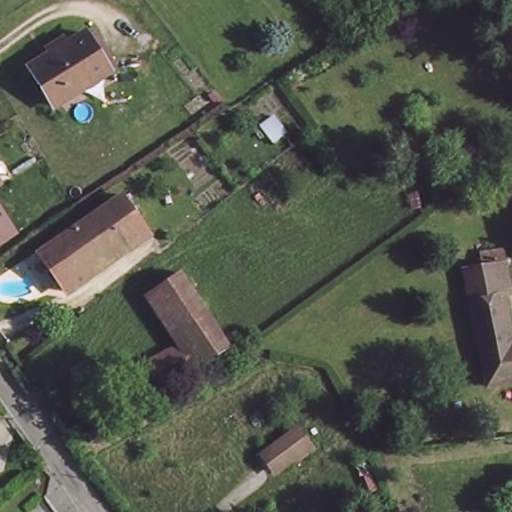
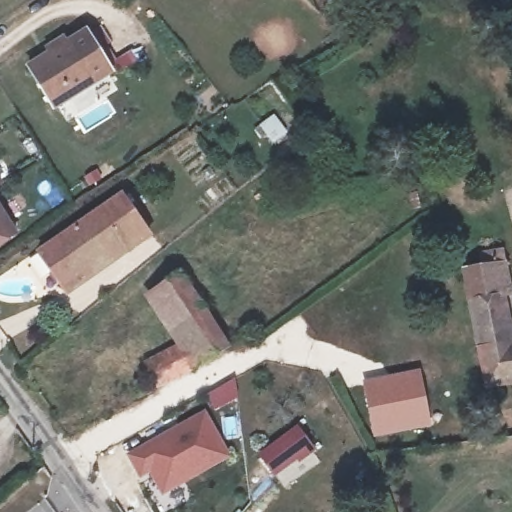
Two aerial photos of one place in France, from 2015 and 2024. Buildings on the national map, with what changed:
unchanged [(60,103),(35,66),(93,31),(116,70),(60,103)]
unchanged [(0,188),(0,171),(8,183),(0,188)]
unchanged [(151,232),(129,248),(128,246),(97,268),(98,269),(70,289),(42,250),(121,193),(151,232)]
unchanged [(0,249),(0,200),(23,234),(0,249)]
unchanged [(483,266),(483,256),(502,250),(509,268),(498,268),(512,341),(512,384),(488,387),(466,269),(483,266)]
unchanged [(228,346),(179,374),(155,385),(141,360),(181,338),(151,293),(181,274),(195,295),(228,346)]
new [(421,368),(432,426),(373,437),(362,379),(421,368)]
new [(201,407),(228,448),(172,488),(156,489),(146,477),(143,480),(128,457),(201,407)]
unchanged [(265,452),(276,444),(302,425),(315,444),(304,452),(300,448),(286,458),(274,466),(265,452)]

